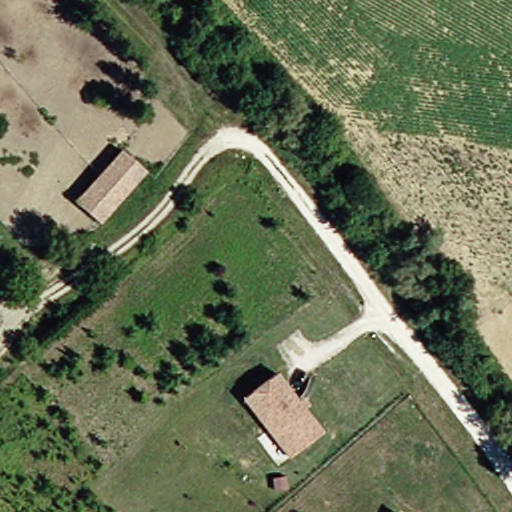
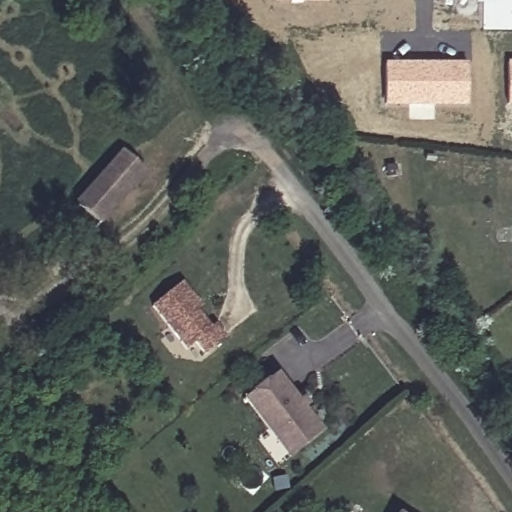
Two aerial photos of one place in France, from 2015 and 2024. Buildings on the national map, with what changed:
new [(328,1),(275,1),(275,0),(328,0),(328,1)]
new [(484,30),(483,1),(477,1),(477,0),(512,0),(512,30),(484,30)]
new [(507,105),(507,61),(512,61),(512,105),(507,105)]
new [(467,106),(385,105),(384,62),(468,62),(467,106)]
unchanged [(105,222),(80,201),(130,147),(154,169),(105,222)]
new [(219,323),(230,336),(208,353),(199,341),(190,348),(156,305),(186,281),(199,297),(205,305),(201,308),(214,326),(219,323)]
unchanged [(280,437),(242,394),(275,367),(325,426),(303,443),(292,452),(280,437)]
unchanged [(402,512),(400,512),(401,511),(402,512)]

